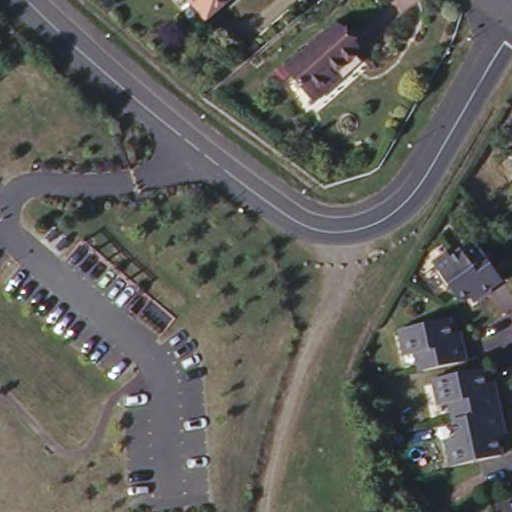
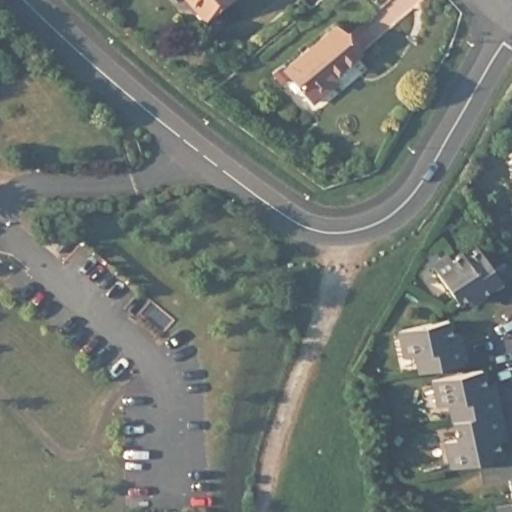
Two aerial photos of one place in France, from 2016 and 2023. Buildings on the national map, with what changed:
unchanged [(201,13),(190,0),(216,0),(201,13)]
unchanged [(324,85),(305,100),(277,67),(327,23),(352,51),(325,73),(331,80),(324,85)]
unchanged [(511,164),(512,163),(512,166),(511,164)]
unchanged [(467,261),(479,252),(504,283),(487,297),(483,292),(464,306),(439,275),(463,256),(467,261)]
unchanged [(449,319),(456,343),(463,342),(468,361),(423,372),(419,354),(408,357),(401,331),(449,319)]
unchanged [(484,369),(489,394),(497,392),(502,411),(457,422),(453,404),(442,407),(435,381),(484,369)]
unchanged [(502,411),(506,430),(499,432),(504,456),(456,468),(449,442),(461,439),(457,422),(502,411)]
unchanged [(511,495),(512,495),(512,502),(511,495)]
unchanged [(489,512),(488,508),(512,502),(512,512),(489,512)]

